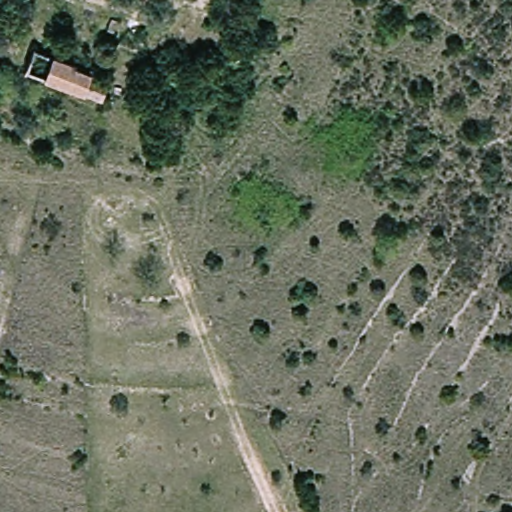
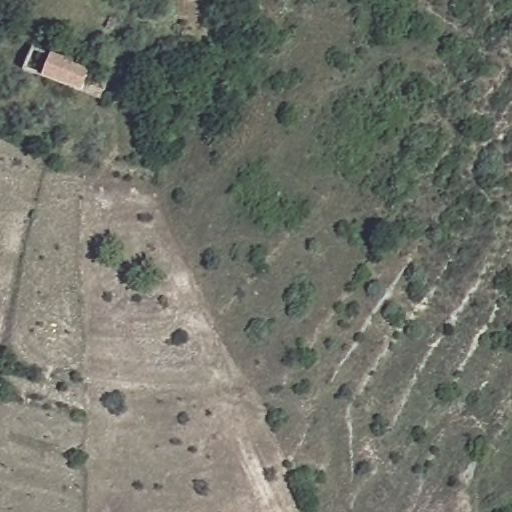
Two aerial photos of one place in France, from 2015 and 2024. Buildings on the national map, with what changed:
unchanged [(57,60),(106,73),(101,94),(52,82),(57,60)]

